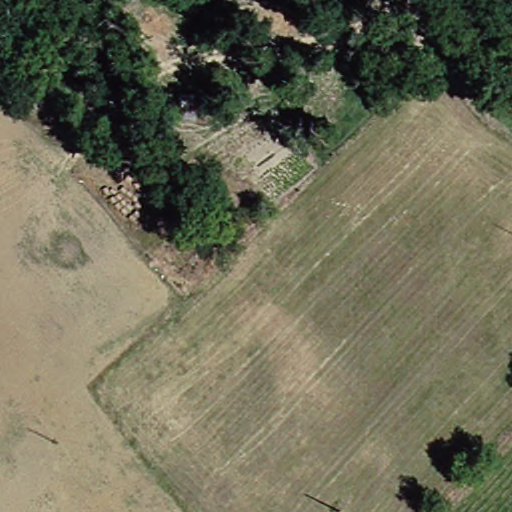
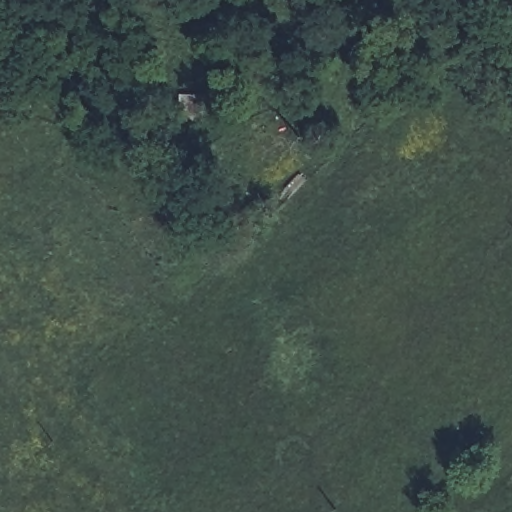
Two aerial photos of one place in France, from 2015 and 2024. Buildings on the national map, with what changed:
[]

